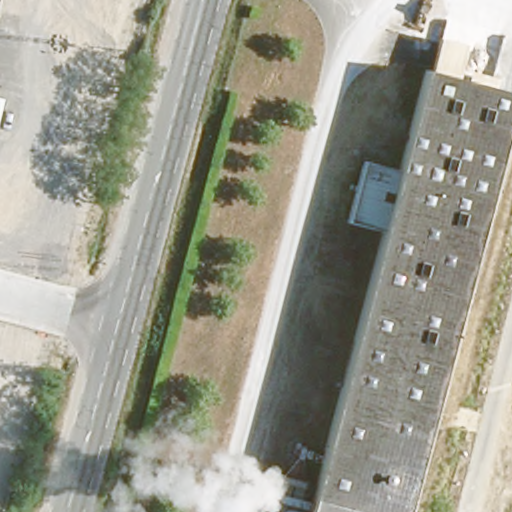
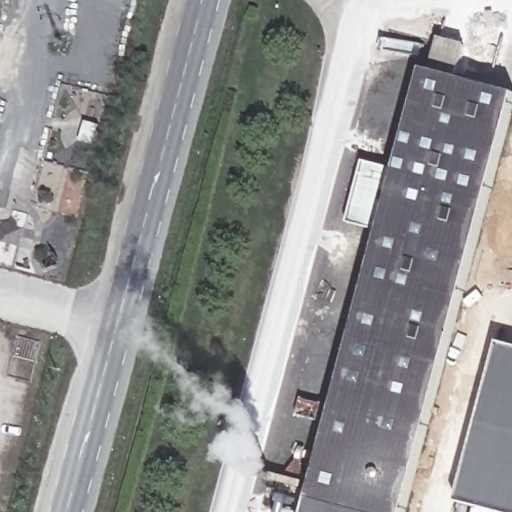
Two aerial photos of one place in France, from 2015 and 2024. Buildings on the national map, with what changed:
unchanged [(440,71),(512,93),(512,129),(430,109),(440,71)]
unchanged [(393,231),(362,222),(378,163),(412,171),(430,109),(512,129),(512,152),(458,347),(367,324),(393,231)]
unchanged [(358,358),(367,324),(458,347),(450,380),(358,358)]
new [(512,512),(500,512),(459,501),(499,344),(512,347),(512,512)]
unchanged [(358,358),(450,380),(412,512),(315,512),(358,358)]
new [(478,506),(500,512),(477,512),(478,506)]

